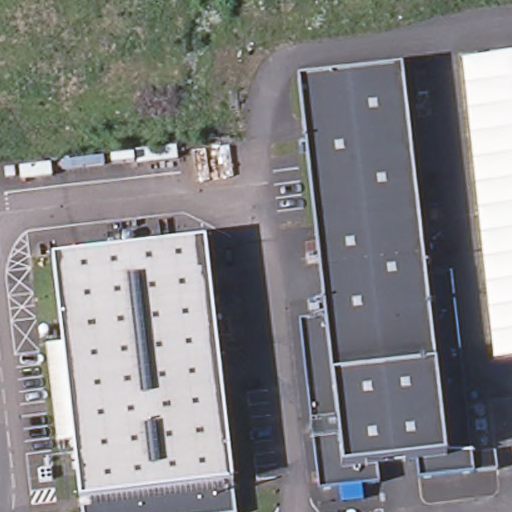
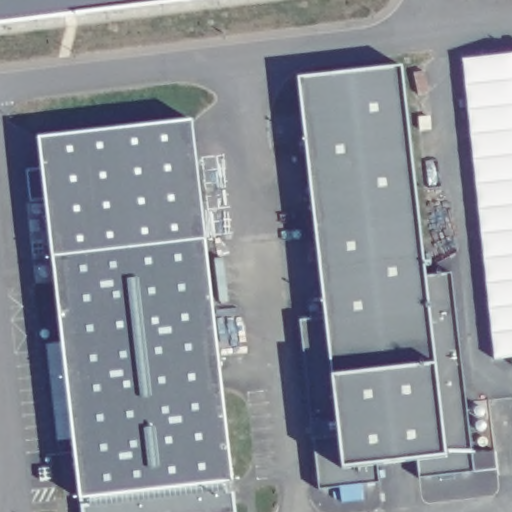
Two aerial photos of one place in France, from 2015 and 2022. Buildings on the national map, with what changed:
new [(0,0),(180,0),(0,23),(0,0)]
unchanged [(512,53),(512,357),(496,359),(463,59),(512,53)]
unchanged [(402,66),(430,281),(454,275),(468,401),(482,400),(487,452),(494,452),(496,470),(418,479),(410,458),(375,462),(381,483),(320,489),(301,321),(326,321),(301,79),(402,66)]
new [(55,261),(46,199),(30,201),(28,171),(44,169),(40,138),(193,121),(209,248),(55,261)]
unchanged [(230,490),(222,491),(222,497),(231,497),(233,512),(78,512),(78,510),(88,509),(87,502),(76,503),(55,261),(209,248),(230,490)]

